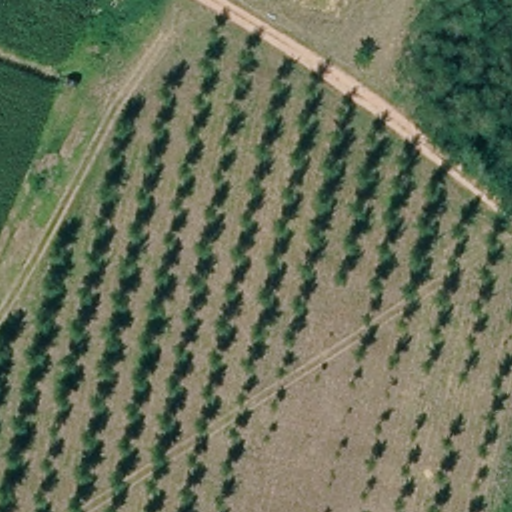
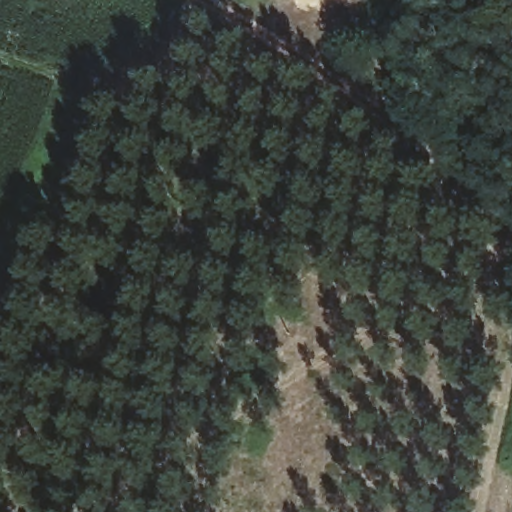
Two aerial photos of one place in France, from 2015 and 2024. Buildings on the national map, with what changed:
[]

